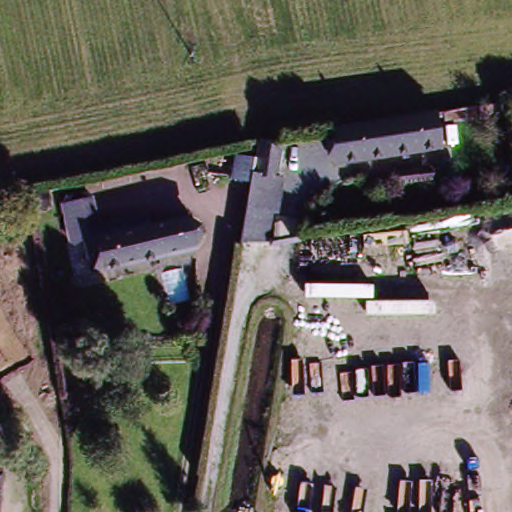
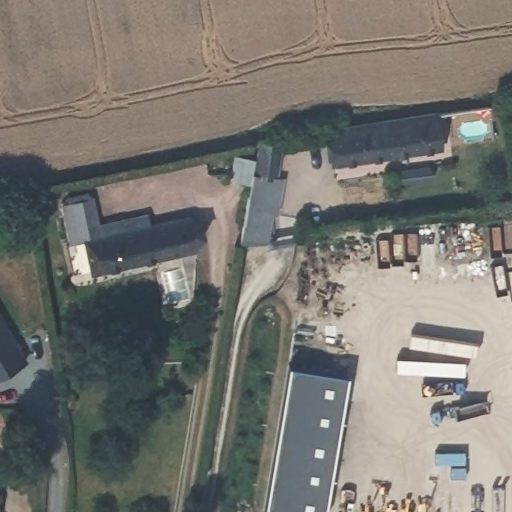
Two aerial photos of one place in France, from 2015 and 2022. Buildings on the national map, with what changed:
unchanged [(440,155),(336,172),(328,124),(431,109),(440,155)]
unchanged [(241,157),(262,159),(258,192),(264,192),(259,228),(254,227),(250,263),(250,264),(220,268),(231,192),(236,192),(241,157)]
unchanged [(203,255),(73,279),(65,235),(60,207),(93,201),(98,229),(149,220),(151,231),(196,222),(203,255)]
demolished [(5,360),(0,360),(0,292),(8,292),(5,360)]
new [(29,357),(0,374),(0,307),(29,357)]
new [(325,512),(272,512),(264,511),(291,362),(349,373),(325,512)]
unchanged [(1,477),(0,488),(0,476),(1,477)]

